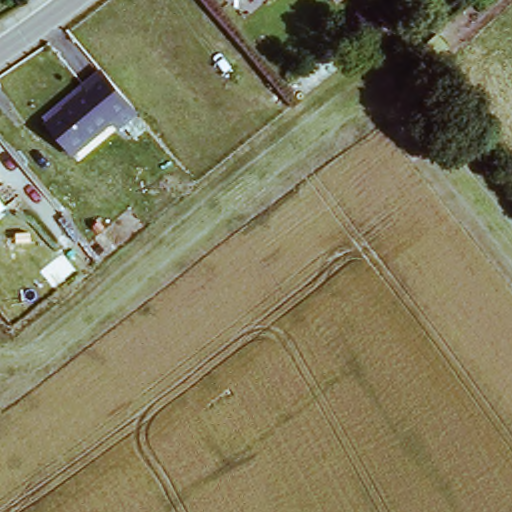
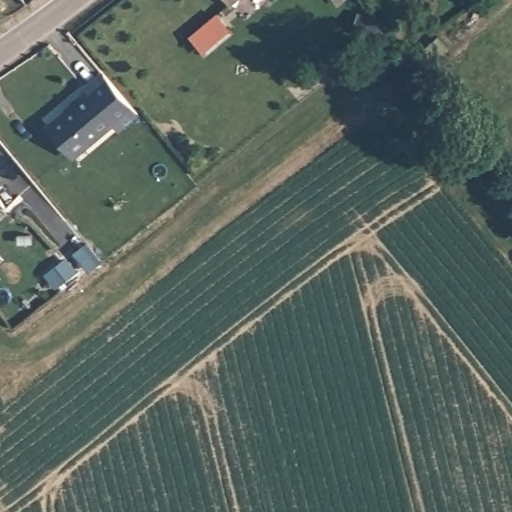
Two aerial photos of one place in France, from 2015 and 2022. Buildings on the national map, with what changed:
new [(219,14),(231,28),(203,50),(192,36),(219,14)]
unchanged [(418,70),(417,71),(408,62),(411,59),(422,49),(431,58),(418,70)]
unchanged [(117,127),(112,120),(69,153),(44,121),(71,101),(72,103),(87,90),(85,88),(104,74),(135,113),(117,127)]

